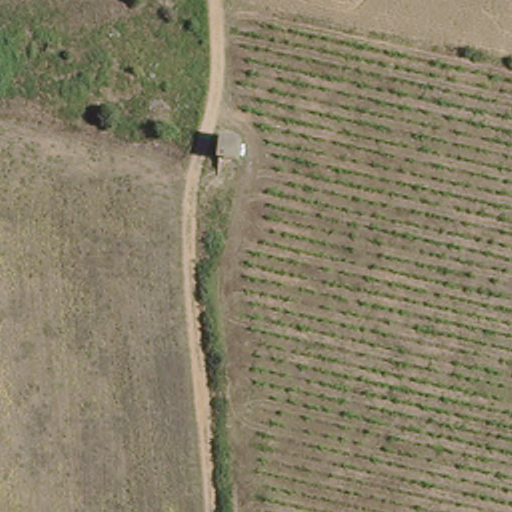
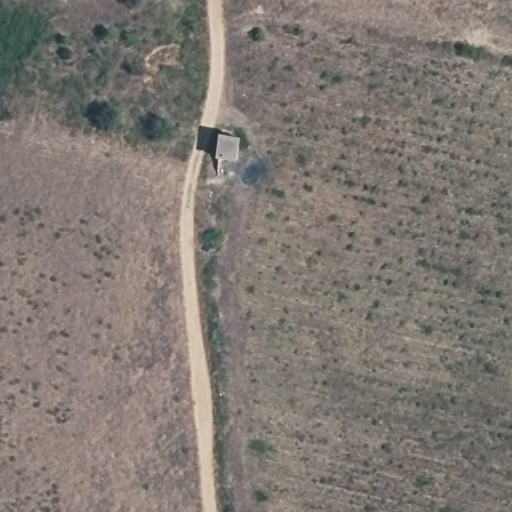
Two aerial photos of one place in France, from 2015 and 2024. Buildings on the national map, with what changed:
unchanged [(240,140),(234,165),(217,164),(224,139),(240,140)]

